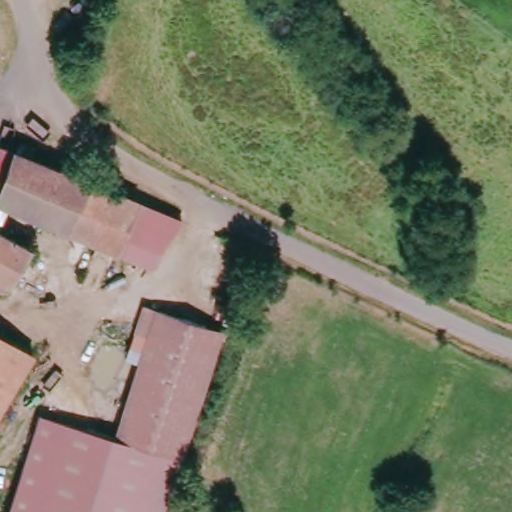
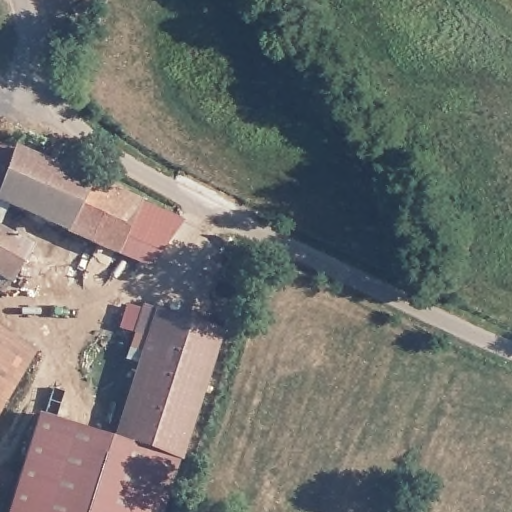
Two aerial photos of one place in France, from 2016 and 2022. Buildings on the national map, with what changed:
unchanged [(133,268),(122,264),(0,211),(0,209),(20,156),(25,159),(27,151),(41,157),(37,164),(143,212),(141,217),(153,223),(133,268)]
unchanged [(7,285),(0,281),(0,233),(25,248),(7,285)]
unchanged [(218,332),(175,473),(164,512),(9,512),(37,417),(117,441),(120,427),(148,337),(133,333),(140,308),(218,332)]
unchanged [(20,361),(0,403),(0,342),(23,353),(20,361)]

